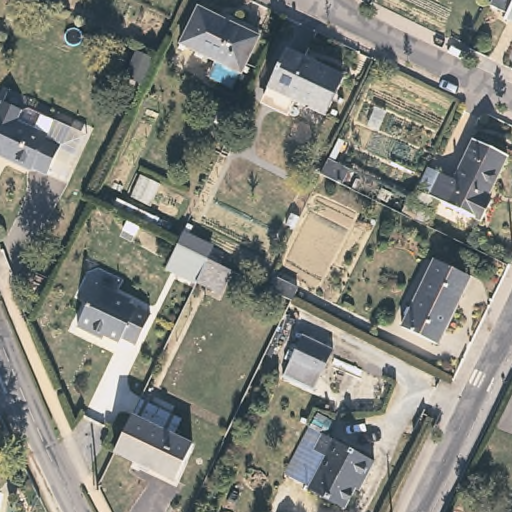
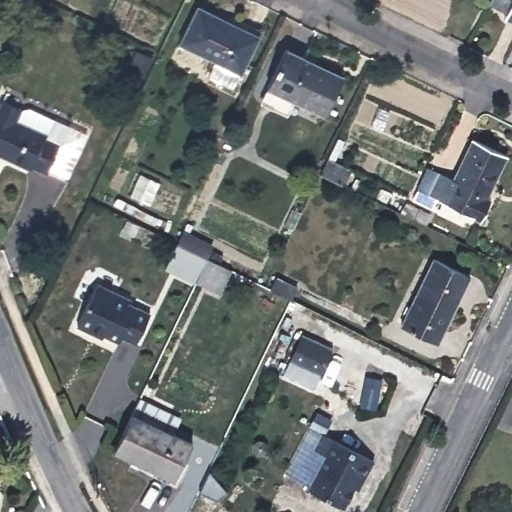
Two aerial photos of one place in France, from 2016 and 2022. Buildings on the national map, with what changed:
unchanged [(504,19),(507,14),(487,5),(490,0),(512,0),(512,23),(504,19)]
unchanged [(260,35),(242,72),(240,72),(233,87),(205,74),(213,58),(180,40),(198,4),(260,35)]
unchanged [(263,102),(270,88),(267,87),(286,48),(344,76),(325,115),(291,98),(284,112),(263,102)]
unchanged [(15,123),(46,137),(45,139),(59,146),(46,176),(31,169),(30,171),(0,157),(0,108),(2,103),(20,112),(15,123)]
unchanged [(441,170),(454,176),(473,135),(506,151),(486,193),(491,195),(480,217),(437,197),(431,208),(412,198),(417,187),(428,164),(441,170)]
unchanged [(347,172),(340,187),(318,177),(325,162),(347,172)]
unchanged [(214,293),(195,283),(195,282),(165,268),(177,244),(182,232),(213,247),(207,259),(227,268),(214,293)]
unchanged [(400,325),(433,257),(465,272),(470,274),(462,292),(437,342),(400,325)]
unchanged [(297,288),(291,300),(270,289),(276,278),(297,288)]
unchanged [(128,301),(127,305),(148,315),(134,345),(120,338),(118,342),(92,330),(87,333),(75,326),(95,285),(128,301)]
unchanged [(330,349),(313,385),(284,371),(301,335),(330,349)]
unchanged [(176,481),(116,451),(134,415),(142,400),(180,419),(173,434),(194,445),(176,481)]
unchanged [(373,461),(364,480),(359,478),(344,507),(308,487),(324,455),(314,450),(322,434),(373,461)]

